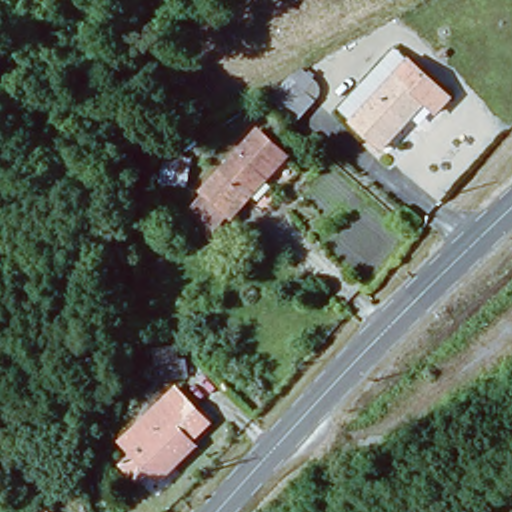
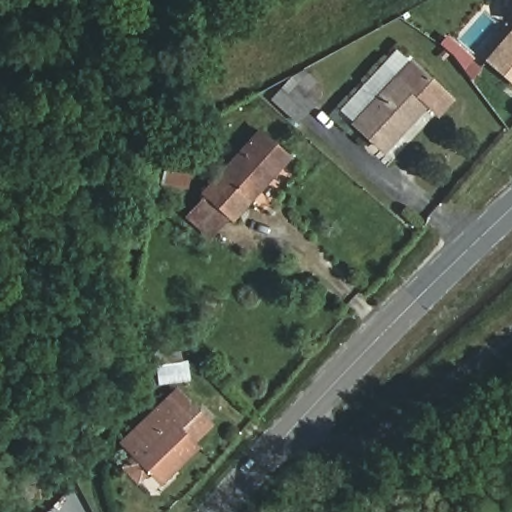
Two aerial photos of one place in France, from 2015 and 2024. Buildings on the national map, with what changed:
new [(512,85),(483,60),(512,26),(512,85)]
unchanged [(436,116),(423,107),(384,154),(351,126),(390,81),(403,66),(419,77),(447,100),(436,116)]
unchanged [(281,113),(299,90),(316,104),(297,126),(281,113)]
unchanged [(301,136),(216,243),(188,223),(208,200),(204,196),(270,112),(301,136)]
unchanged [(153,500),(115,465),(144,438),(130,423),(172,380),(221,428),(153,500)]
unchanged [(44,500),(6,499),(7,472),(45,474),(44,500)]

